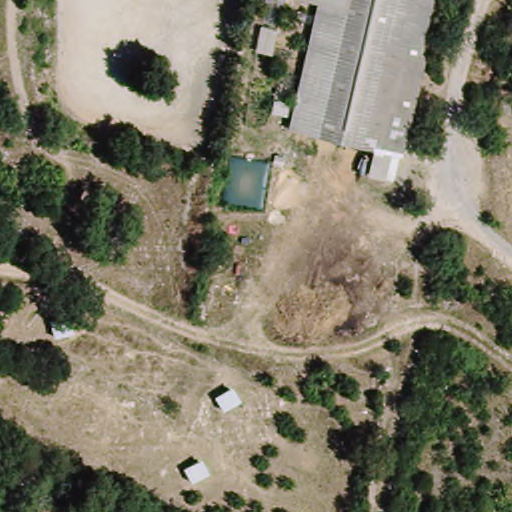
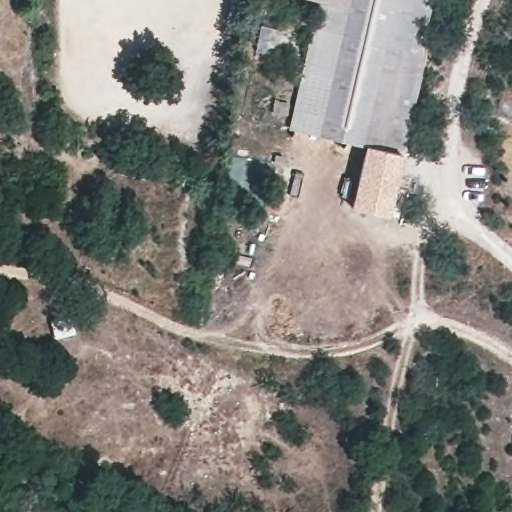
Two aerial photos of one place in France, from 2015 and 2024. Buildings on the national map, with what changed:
unchanged [(289,136),(320,1),(314,0),(345,0),(310,142),(289,136)]
unchanged [(404,153),(310,142),(345,0),(436,0),(404,153)]
new [(364,148),(404,153),(388,216),(349,208),(364,148)]

